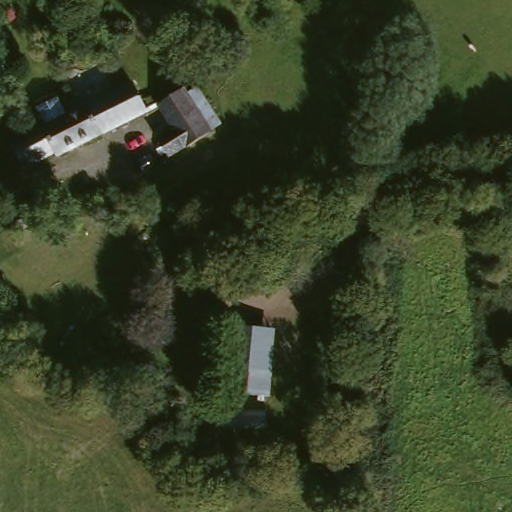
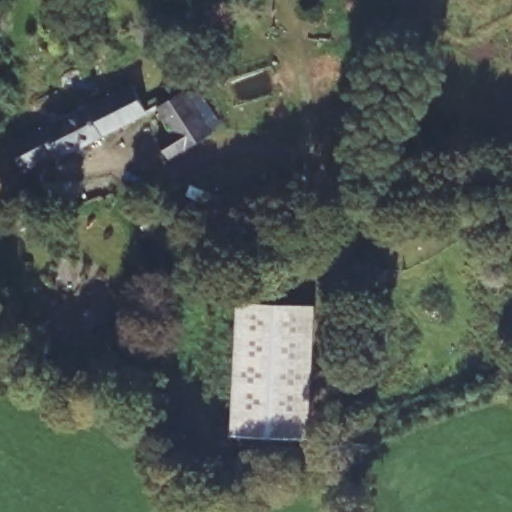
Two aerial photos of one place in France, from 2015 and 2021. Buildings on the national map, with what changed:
unchanged [(155,103),(179,86),(190,100),(202,91),(221,119),(210,127),(185,144),(155,103)]
unchanged [(53,156),(22,169),(14,147),(46,129),(38,111),(57,103),(64,119),(87,109),(119,95),(130,88),(145,118),(102,139),(81,151),(77,153),(54,161),(53,156)]
unchanged [(172,197),(129,206),(124,185),(169,177),(171,188),(172,197)]
unchanged [(55,226),(28,237),(19,220),(40,210),(45,208),(47,212),(53,220),(55,226)]
new [(238,301),(315,305),(307,438),(232,435),(238,301)]

